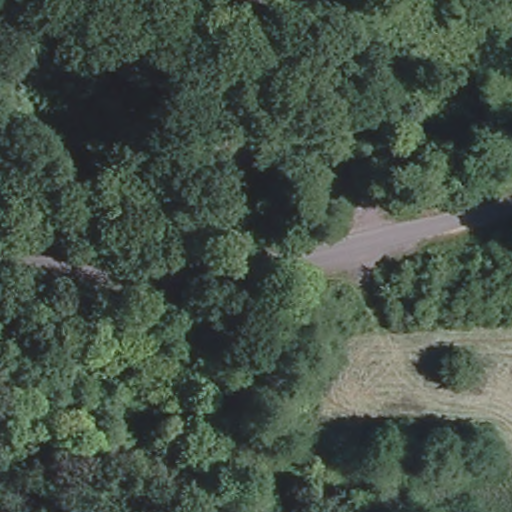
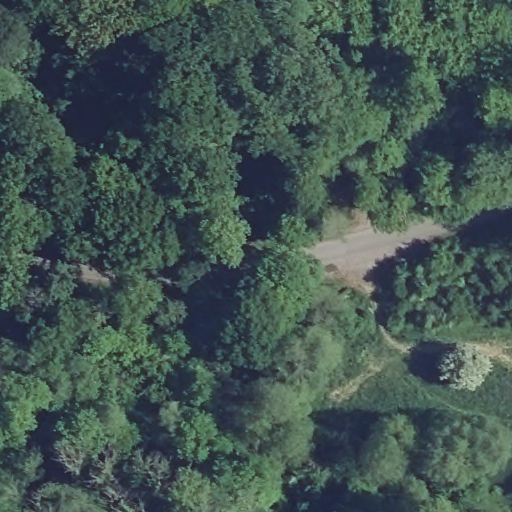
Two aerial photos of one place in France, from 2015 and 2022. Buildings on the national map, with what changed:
[]

